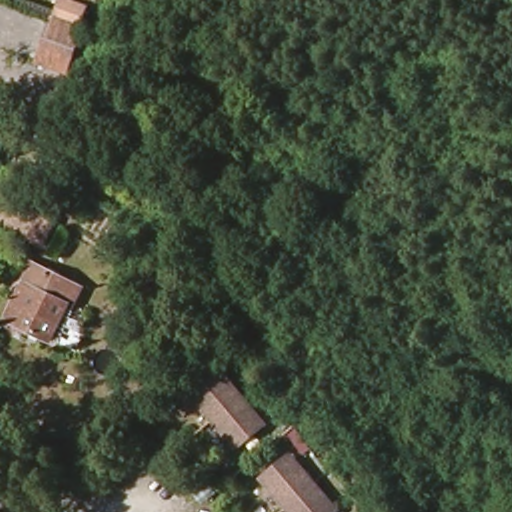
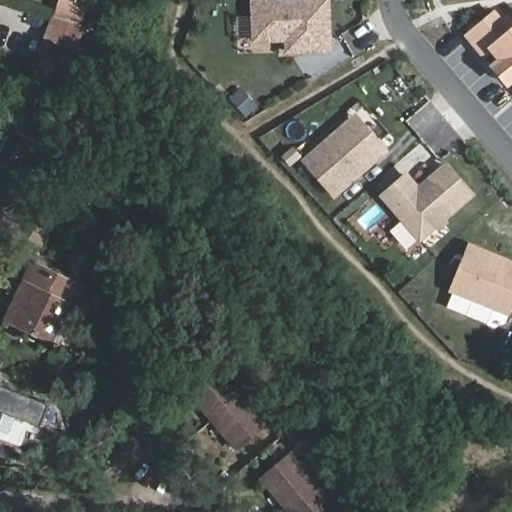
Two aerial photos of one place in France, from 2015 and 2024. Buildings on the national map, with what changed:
new [(283,42),(251,43),(249,0),(330,0),(332,52),(283,55),(283,42)]
new [(511,90),(465,36),(502,7),(512,18),(512,90),(511,90)]
unchanged [(70,73),(41,64),(57,21),(86,31),(70,73)]
new [(335,200),(300,160),(355,113),(388,152),(335,200)]
new [(406,171),(418,185),(445,161),(474,194),(420,243),(378,196),(406,171)]
unchanged [(37,211),(53,219),(40,245),(23,236),(37,211)]
new [(448,292),(468,242),(512,260),(512,310),(509,316),(448,292)]
unchanged [(87,287),(77,304),(71,302),(52,341),(8,318),(34,262),(87,287)]
unchanged [(217,369),(265,426),(238,449),(189,391),(217,369)]
new [(0,389),(42,405),(34,425),(0,411),(0,389)]
unchanged [(291,456),(337,512),(291,512),(262,478),(291,456)]

